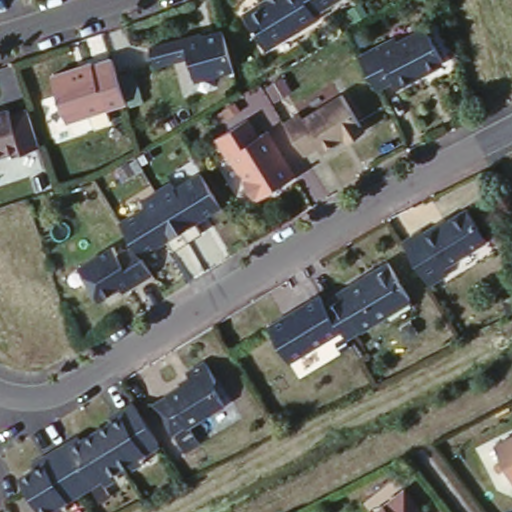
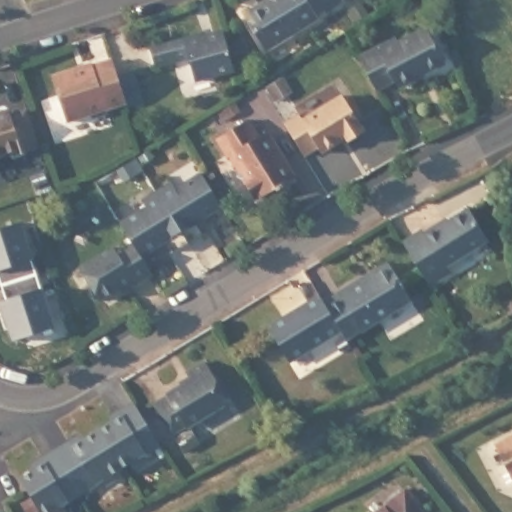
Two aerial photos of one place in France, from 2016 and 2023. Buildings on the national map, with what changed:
unchanged [(253,0),(324,0),(308,10),(312,15),(260,47),(237,10),(253,0)]
unchanged [(238,71),(187,84),(181,61),(148,68),(142,43),(222,21),(238,71)]
unchanged [(444,57),(397,81),(395,76),(377,85),(360,51),(395,32),(398,38),(426,22),(444,57)]
unchanged [(105,59),(121,105),(67,121),(52,76),(105,59)]
unchanged [(307,103),(310,109),(350,84),(372,119),(355,129),(352,126),(328,141),(325,136),(312,144),(292,112),(307,103)]
unchanged [(1,112),(17,107),(30,145),(12,151),(11,147),(0,150),(0,111),(1,112)]
unchanged [(254,197),(244,181),(247,179),(242,172),(240,173),(230,155),(227,157),(215,135),(246,116),(257,133),(266,127),(277,146),(276,147),(281,156),(282,155),(293,172),(254,197)]
unchanged [(150,196),(145,189),(175,171),(179,177),(205,160),(226,192),(199,209),(206,221),(177,239),(170,228),(144,244),(124,212),(150,196)]
unchanged [(417,225),(420,230),(462,204),(482,234),(438,261),(445,269),(427,280),(399,236),(417,225)]
new [(42,265),(36,268),(60,331),(15,348),(1,305),(7,303),(0,281),(0,232),(27,223),(42,265)]
unchanged [(107,244),(113,252),(127,246),(146,274),(124,294),(119,287),(100,299),(73,265),(107,244)]
unchanged [(388,258),(411,294),(347,334),(325,299),(388,258)]
unchanged [(313,294),(325,299),(341,324),(288,361),(267,330),(313,294)]
unchanged [(170,394),(169,393),(192,377),(188,371),(206,360),(217,377),(216,385),(226,401),(189,425),(188,423),(175,432),(157,403),(170,394)]
unchanged [(118,466),(81,490),(47,512),(42,512),(20,478),(44,463),(42,459),(56,450),(70,441),(72,445),(95,430),(119,415),(117,412),(132,404),(157,442),(118,466)]
unchanged [(512,473),(497,443),(512,435),(512,473)]
unchanged [(432,512),(380,512),(411,487),(432,512)]

